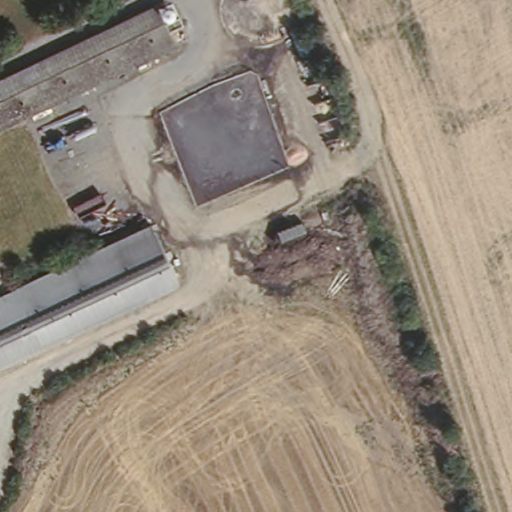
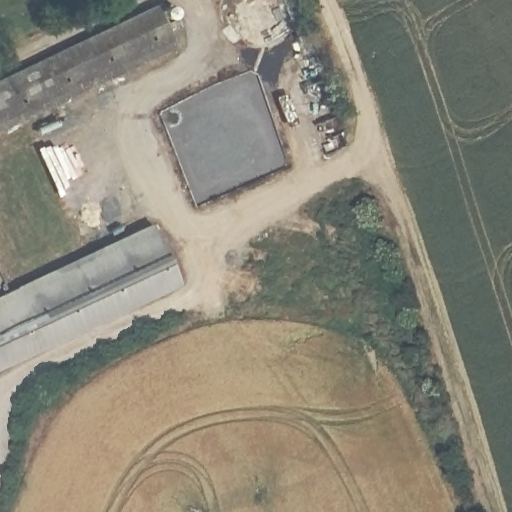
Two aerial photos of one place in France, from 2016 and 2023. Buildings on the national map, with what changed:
unchanged [(0,126),(0,74),(155,0),(156,0),(174,41),(0,126)]
unchanged [(161,232),(0,303),(0,291),(159,223),(161,232)]
unchanged [(183,286),(0,366),(0,303),(161,232),(183,286)]

